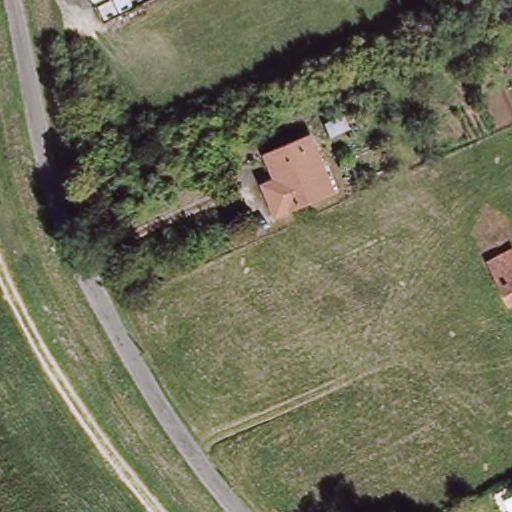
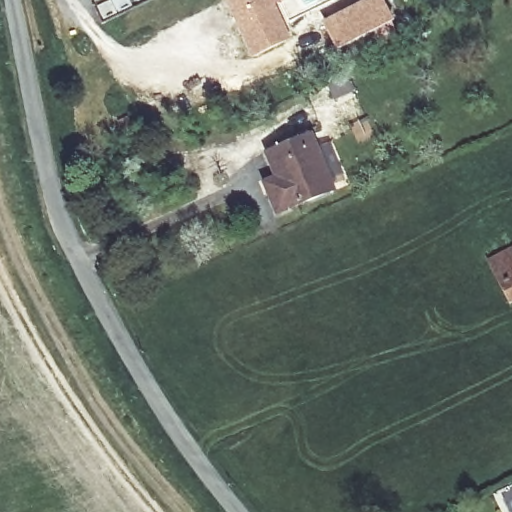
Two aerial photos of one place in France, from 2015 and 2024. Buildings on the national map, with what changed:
new [(255,56),(226,0),(271,0),(290,39),(255,56)]
new [(382,0),(393,23),(339,50),(326,23),(373,0),(382,0)]
unchanged [(274,171),(266,152),(313,131),(335,182),(277,207),(263,176),(274,171)]
unchanged [(498,254),(512,247),(512,286),(498,254)]

